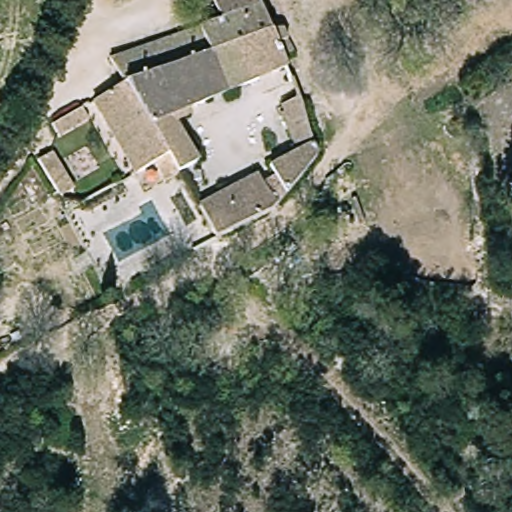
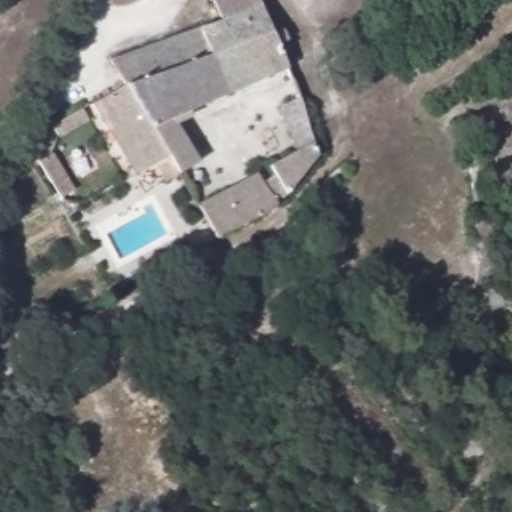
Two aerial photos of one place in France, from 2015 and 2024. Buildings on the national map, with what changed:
unchanged [(258,4),(222,20),(212,0),(257,0),(258,4)]
unchanged [(287,71),(225,103),(173,121),(201,164),(177,177),(168,162),(121,185),(107,162),(121,154),(90,105),(125,88),(115,65),(222,20),(258,4),(287,71)]
unchanged [(320,147),(279,209),(217,238),(197,208),(254,174),(260,185),(274,178),(267,167),(292,152),(277,115),(300,102),(320,147)]

